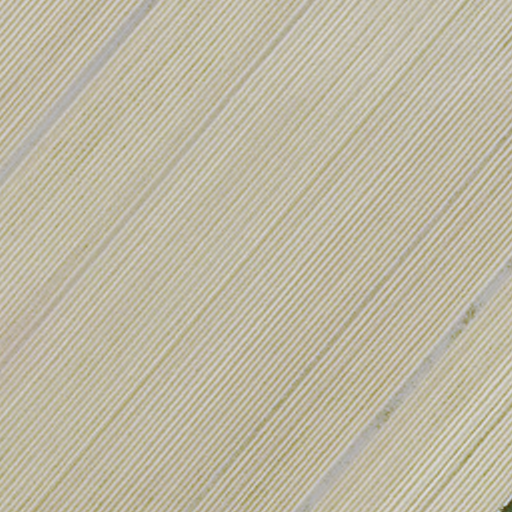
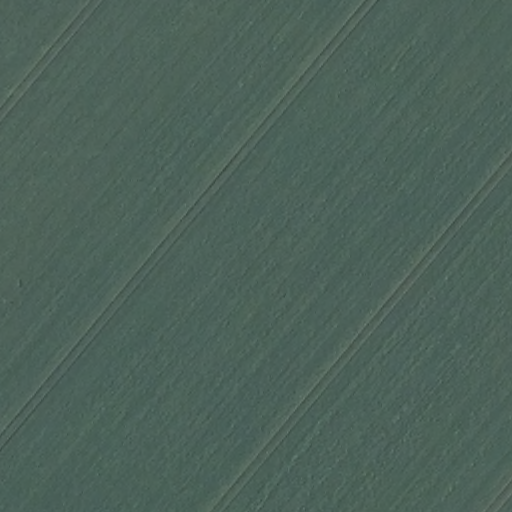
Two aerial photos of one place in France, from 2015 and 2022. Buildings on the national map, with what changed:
[]

